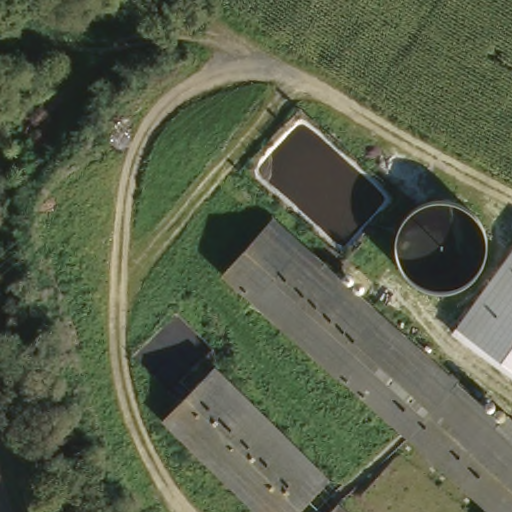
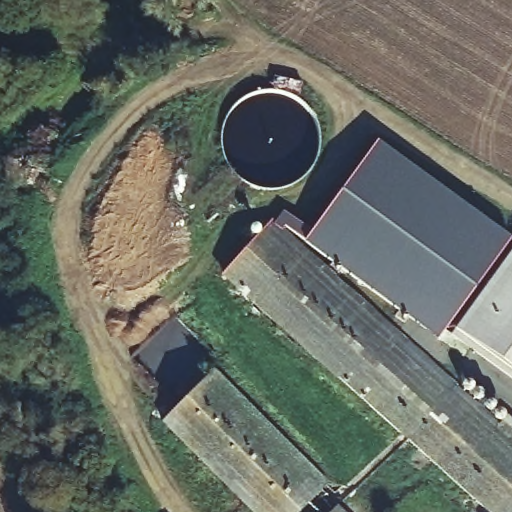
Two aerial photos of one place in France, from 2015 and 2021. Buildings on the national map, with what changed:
new [(510,237),(435,337),(306,241),(376,142),(510,237)]
unchanged [(500,512),(234,274),(281,221),(508,425),(512,422),(512,512),(500,512)]
unchanged [(512,252),(512,365),(454,329),(512,252)]
unchanged [(305,512),(257,512),(167,421),(219,369),(333,483),(305,512)]
unchanged [(356,512),(341,512),(348,505),(356,512)]

